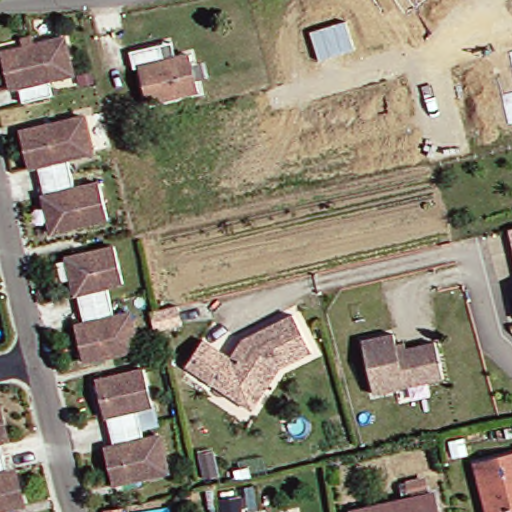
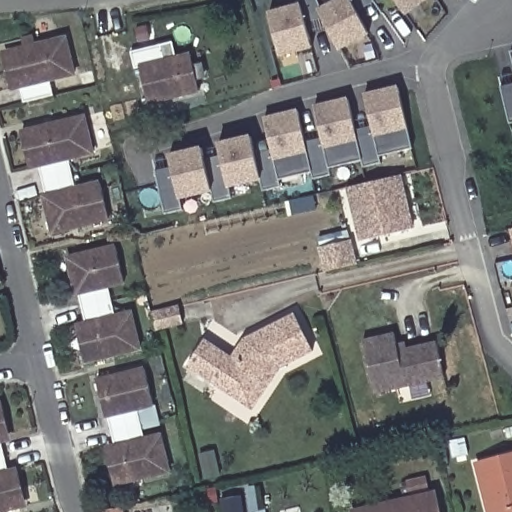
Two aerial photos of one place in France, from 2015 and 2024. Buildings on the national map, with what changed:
unchanged [(378,4),(374,0),(383,0),(378,4)]
unchanged [(407,17),(395,0),(431,0),(407,17)]
unchanged [(14,102),(10,87),(8,87),(0,57),(0,50),(14,46),(13,38),(23,36),(25,44),(56,37),(65,74),(40,80),(44,95),(14,102)]
unchanged [(188,65),(198,63),(202,79),(192,81),(194,91),(143,104),(135,67),(130,69),(126,52),(156,45),(168,42),(172,58),(186,54),(188,65)]
unchanged [(512,50),(512,68),(508,50),(512,50)]
unchanged [(83,71),(86,84),(71,87),(68,74),(83,71)]
new [(273,156),(264,117),(298,109),(307,148),(323,144),(314,105),(347,97),(356,136),(372,132),(363,93),(397,85),(411,147),(378,155),(379,162),(363,166),(361,158),(329,166),(331,173),(314,177),(312,170),(279,178),(281,185),(264,189),(260,175),(257,160),(273,156)]
unchanged [(502,93),(512,91),(512,122),(508,123),(502,93)]
unchanged [(39,195),(41,194),(38,180),(34,166),(32,166),(26,168),(17,130),(23,129),(80,115),(89,153),(64,158),(68,173),(71,187),(96,181),(105,219),(48,232),(39,195)]
new [(174,179),(169,154),(202,147),(208,171),(223,168),(218,143),(251,135),(257,160),(260,175),(228,182),(231,197),(214,201),(211,187),(178,194),(181,209),(164,213),(157,183),(174,179)]
new [(415,229),(359,241),(347,188),(404,175),(415,229)]
unchanged [(512,254),(505,224),(512,223),(512,254)]
new [(347,242),(352,264),(326,269),(321,247),(347,242)]
unchanged [(79,323),(81,322),(78,308),(74,293),(72,294),(63,257),(111,245),(120,282),(104,286),(108,300),(111,315),(127,311),(136,348),(88,360),(82,361),(73,324),(79,323)]
unchanged [(176,305),(180,319),(151,326),(147,311),(176,305)]
unchanged [(211,384),(183,366),(200,340),(228,359),(229,358),(240,340),(289,314),(308,351),(275,367),(251,404),(247,409),(211,384)]
unchanged [(440,378),(369,394),(357,341),(390,333),(393,345),(401,343),(402,348),(432,342),(440,378)]
unchanged [(108,445),(111,445),(107,430),(104,416),(101,416),(92,379),(140,368),(149,405),(150,404),(154,419),(137,423),(141,437),(156,434),(165,471),(117,482),(108,445)]
unchanged [(464,438),(468,455),(453,458),(449,441),(464,438)]
unchanged [(509,455),(512,454),(512,512),(484,512),(472,464),(509,455)]
unchanged [(2,470),(11,507),(0,510),(0,471),(2,470)]
unchanged [(396,484),(420,479),(424,495),(430,493),(434,512),(348,512),(399,500),(396,484)]
unchanged [(123,508),(123,512),(106,512),(106,510),(123,508)]
unchanged [(260,512),(251,512),(260,510),(260,512)]

